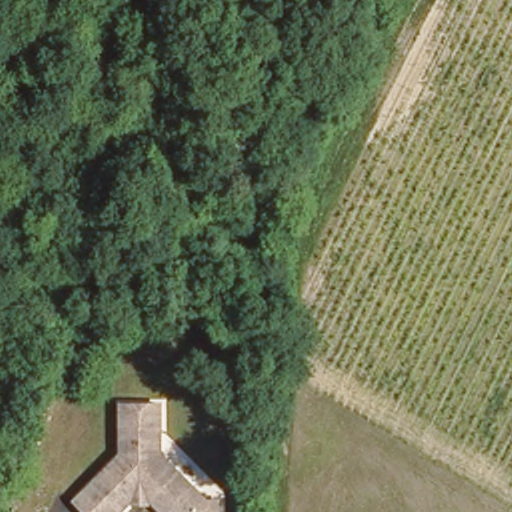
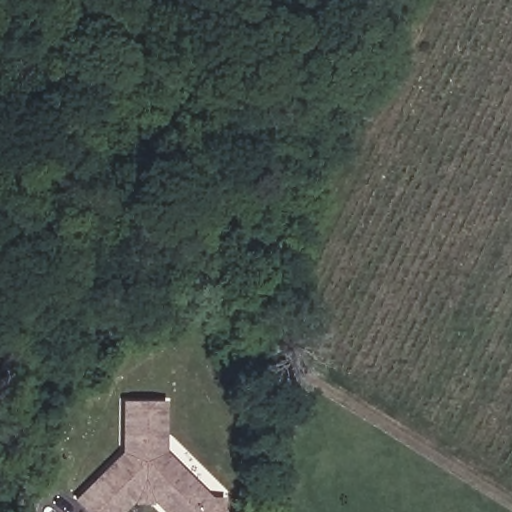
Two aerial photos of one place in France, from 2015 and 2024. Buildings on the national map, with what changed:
unchanged [(137,499),(124,512),(83,512),(76,505),(122,457),(115,407),(155,402),(162,452),(208,495),(223,497),(223,512),(166,512),(148,495),(150,502),(139,505),(137,499)]

